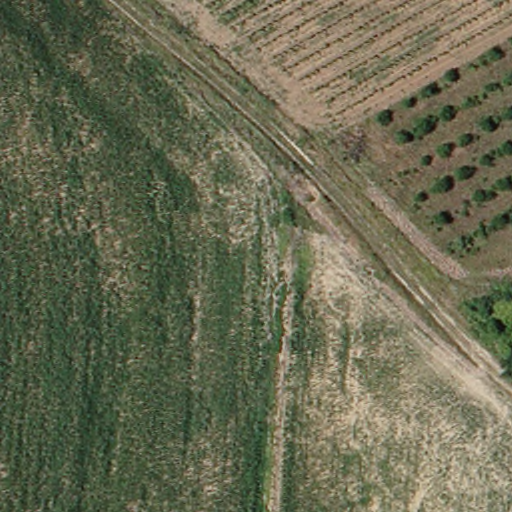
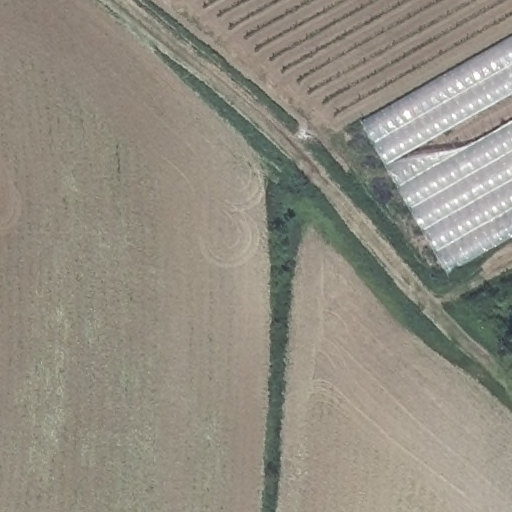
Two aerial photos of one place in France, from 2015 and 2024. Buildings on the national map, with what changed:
new [(512,35),(512,236),(447,272),(361,120),(512,35)]

